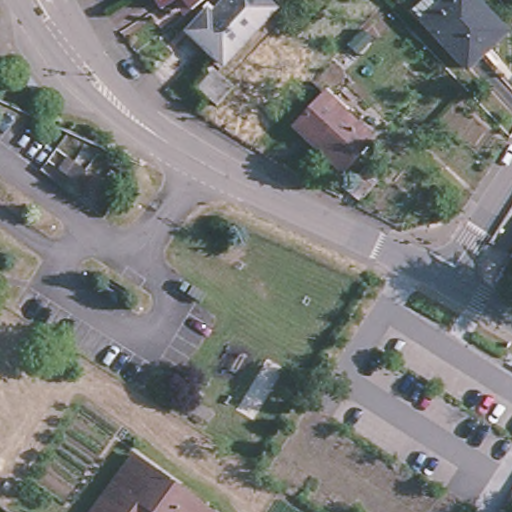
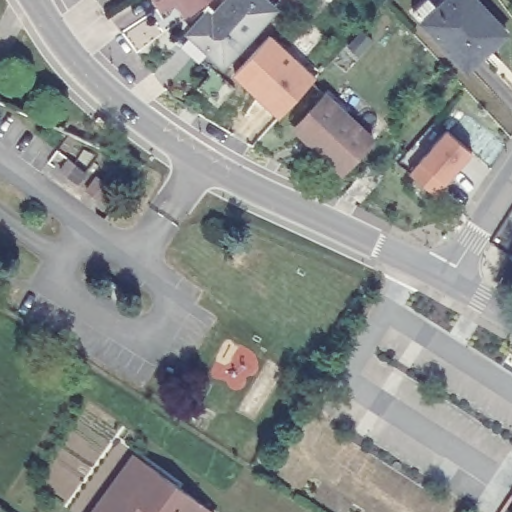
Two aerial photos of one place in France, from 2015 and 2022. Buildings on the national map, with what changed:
unchanged [(162,14),(154,0),(209,0),(192,14),(185,20),(174,7),(162,14)]
unchanged [(210,57),(188,36),(207,17),(211,20),(230,0),(258,0),(261,2),(273,14),(269,19),(222,68),(210,57)]
unchanged [(454,0),(475,0),(510,37),(471,74),(424,22),(417,15),(432,1),(439,9),(442,12),(454,0)]
new [(232,75),(272,35),(316,77),(277,117),(232,75)]
unchanged [(216,107),(209,100),(195,88),(209,74),(206,70),(210,66),(227,81),(234,87),(216,107)]
unchanged [(297,124),(325,95),(352,121),(322,155),(310,144),(294,129),(297,124)]
unchanged [(352,121),(372,139),(342,172),(322,155),(352,121)]
new [(407,172),(419,160),(447,127),(473,151),(446,182),(435,196),(407,172)]
unchanged [(347,189),(367,165),(372,169),(383,177),(362,202),(351,192),(347,189)]
unchanged [(510,263),(512,261),(512,264),(510,263)]
unchanged [(210,509),(207,512),(85,512),(130,451),(210,509)]

